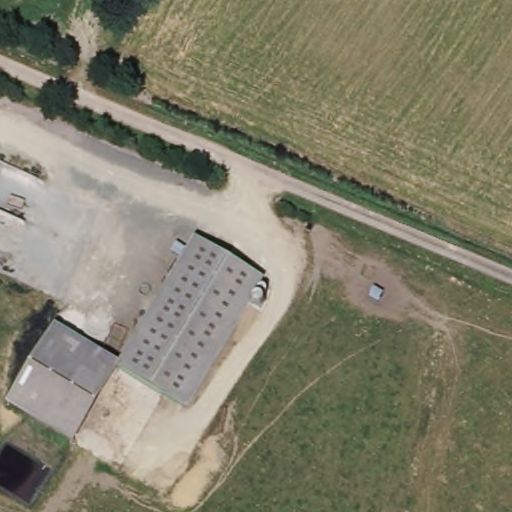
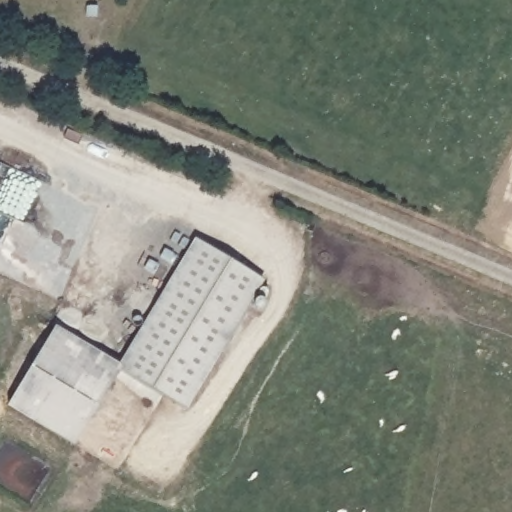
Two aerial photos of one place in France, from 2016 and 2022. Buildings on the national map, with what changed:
unchanged [(202,241),(268,283),(187,410),(122,367),(202,241)]
unchanged [(75,443),(10,403),(59,327),(122,367),(75,443)]

